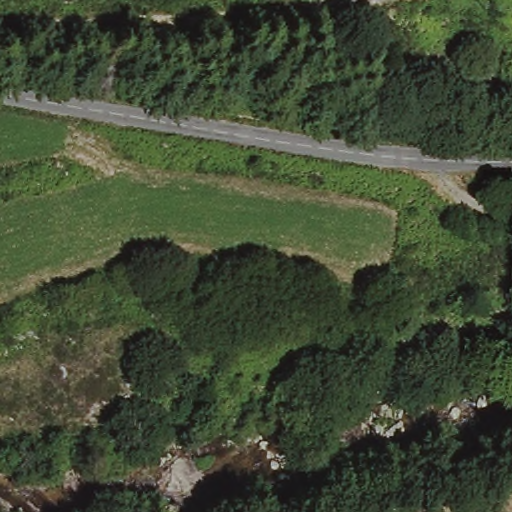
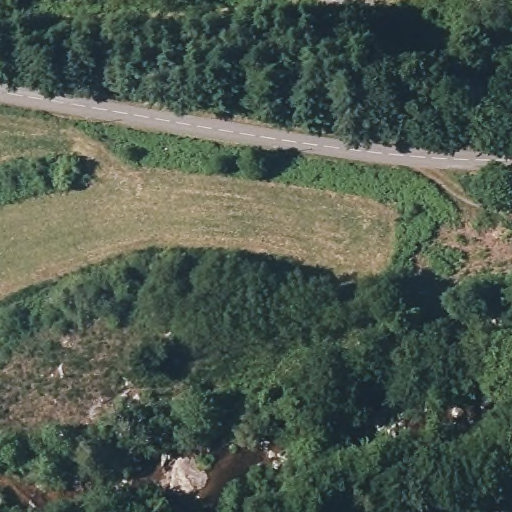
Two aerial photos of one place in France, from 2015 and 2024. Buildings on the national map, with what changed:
[]

